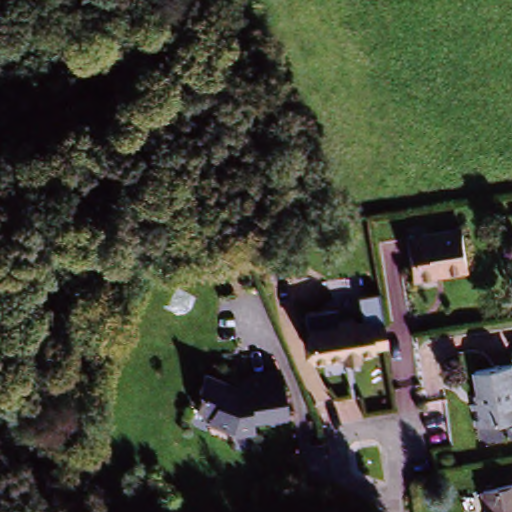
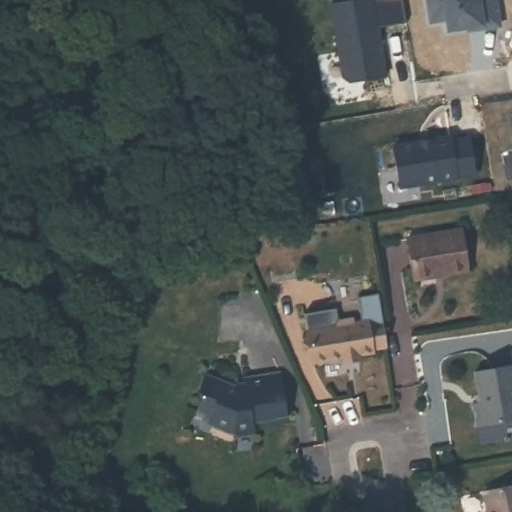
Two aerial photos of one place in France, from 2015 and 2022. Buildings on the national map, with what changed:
new [(360,0),(401,0),(405,24),(376,29),(384,77),(347,83),(341,79),(329,5),(360,0)]
new [(512,133),(510,121),(512,121),(512,133)]
new [(448,138),(449,142),(467,139),(474,176),(402,188),(392,148),(448,138)]
unchanged [(435,280),(413,284),(406,241),(460,233),(467,270),(467,275),(435,280)]
unchanged [(356,358),(357,363),(342,366),(342,361),(310,365),(306,335),(337,330),(335,325),(350,322),(351,327),(360,326),(355,301),(377,298),(385,351),(370,353),(371,356),(356,358)]
unchanged [(482,404),(477,373),(512,368),(512,423),(478,428),(475,405),(482,404)]
unchanged [(205,404),(202,397),(210,379),(242,393),(248,392),(247,383),(282,379),(288,423),(253,428),(255,436),(235,439),(215,431),(212,424),(213,421),(200,415),(205,404)]
unchanged [(512,486),(512,512),(490,512),(485,492),(512,486)]

